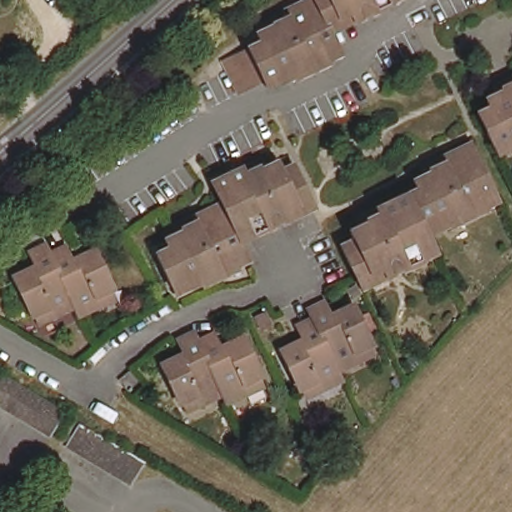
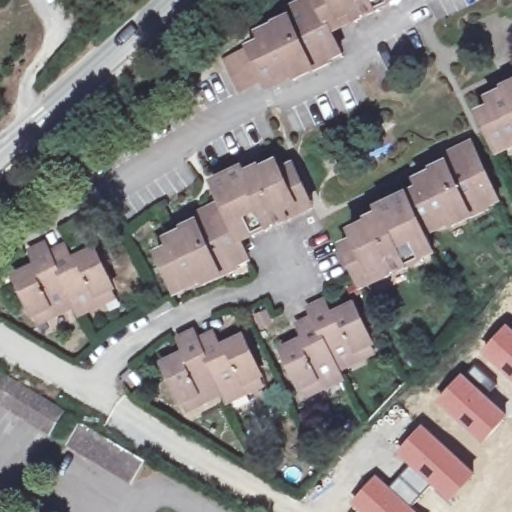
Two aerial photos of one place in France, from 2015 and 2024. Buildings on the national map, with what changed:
unchanged [(293,74),(270,85),(268,82),(242,95),(228,64),(267,45),(263,39),(281,30),(280,27),(292,21),(289,16),(318,2),(318,0),(393,0),(397,6),(360,24),(355,16),(332,27),(342,51),(345,59),(333,65),(298,81),(293,74)]
unchanged [(492,147),(477,116),(488,110),(485,103),(495,97),(492,90),(512,80),(512,138),(492,147)]
unchanged [(392,271),(390,268),(366,280),(350,245),(362,239),(358,230),(368,225),(366,219),(427,190),(422,180),(433,176),(430,169),(480,145),(503,197),(493,202),(495,209),(480,217),(458,226),(457,221),(455,219),(430,230),(438,246),(427,251),(431,260),(415,267),(393,276),(392,271)]
unchanged [(200,279),(175,290),(157,255),(170,250),(167,242),(178,236),(175,229),(223,205),(215,186),(265,163),(268,171),(278,166),(283,175),(295,170),(312,204),(286,215),(290,224),(255,240),(250,232),(239,237),(247,258),(237,262),(240,271),(203,287),(200,279)]
unchanged [(39,317),(33,320),(18,279),(42,269),(37,256),(52,250),(55,257),(72,250),(78,266),(102,258),(117,297),(113,298),(115,305),(105,310),(80,320),(77,311),(55,320),(44,325),(39,317)]
unchanged [(310,395),(306,397),(288,360),(313,347),(307,335),(321,327),(317,319),(332,312),(337,325),(362,314),(378,352),(375,353),(378,361),(366,367),(345,377),(349,386),(326,397),(313,402),(310,395)]
new [(508,323),(512,327),(512,379),(482,352),(508,323)]
unchanged [(185,403),(182,405),(163,366),(187,355),(181,342),(195,335),(200,343),(216,335),(222,350),(245,340),(265,379),(260,381),(263,387),(252,393),(229,403),(225,395),(203,405),(189,411),(185,403)]
unchanged [(127,388),(114,371),(127,361),(140,377),(127,388)]
new [(463,373),(509,415),(483,444),(437,402),(463,373)]
unchanged [(55,438),(0,404),(0,381),(5,374),(70,415),(55,438)]
new [(410,465),(396,452),(421,423),(475,473),(450,502),(431,485),(412,506),(418,512),(361,512),(352,503),(377,475),(391,487),(410,465)]
unchanged [(148,465),(132,490),(65,448),(80,424),(148,465)]

